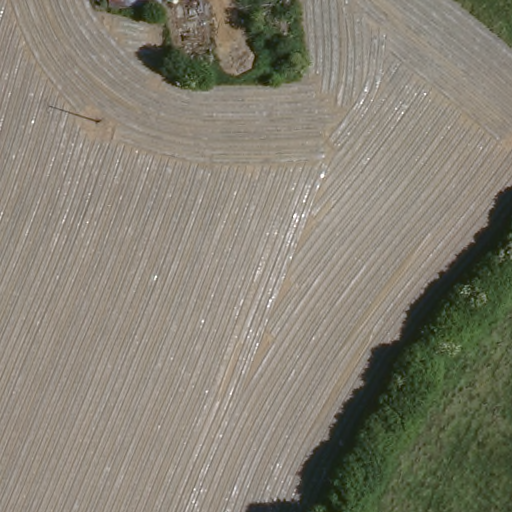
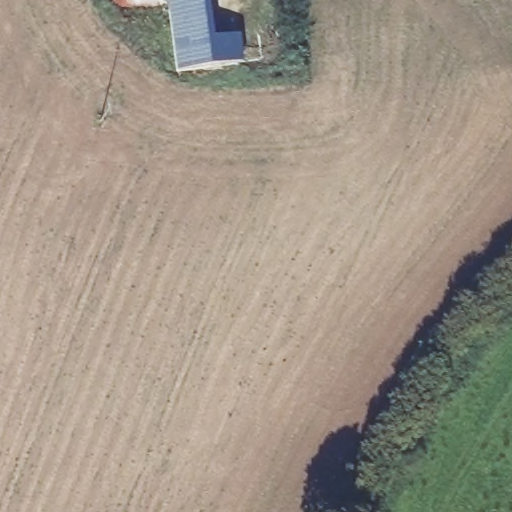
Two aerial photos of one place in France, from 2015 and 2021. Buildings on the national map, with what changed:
unchanged [(105,0),(160,0),(162,9),(109,18),(105,0)]
demolished [(226,68),(189,75),(171,0),(209,0),(226,68)]

